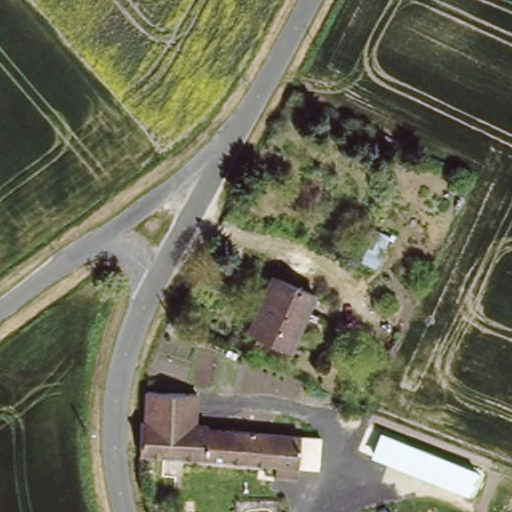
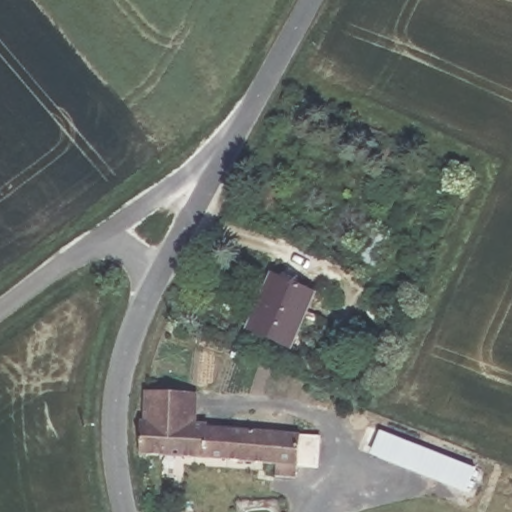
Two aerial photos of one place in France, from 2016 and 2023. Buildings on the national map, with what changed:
unchanged [(376,264),(359,256),(365,243),(381,251),(376,264)]
unchanged [(289,350),(246,331),(270,278),(313,297),(289,350)]
unchanged [(140,417),(144,417),(147,386),(198,390),(195,421),(207,422),(207,425),(320,434),(318,464),(140,449),(140,417)]
unchanged [(371,455),(380,432),(477,470),(467,493),(371,455)]

